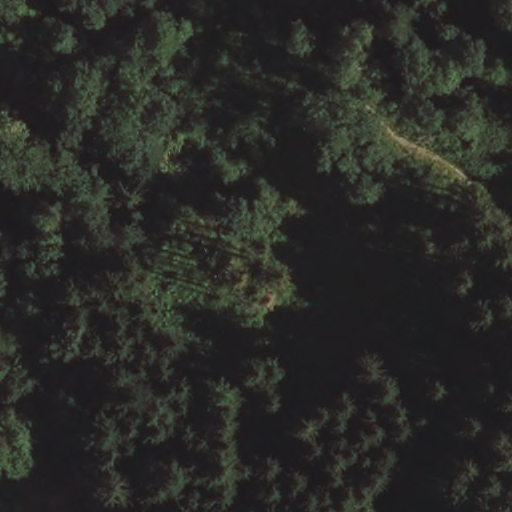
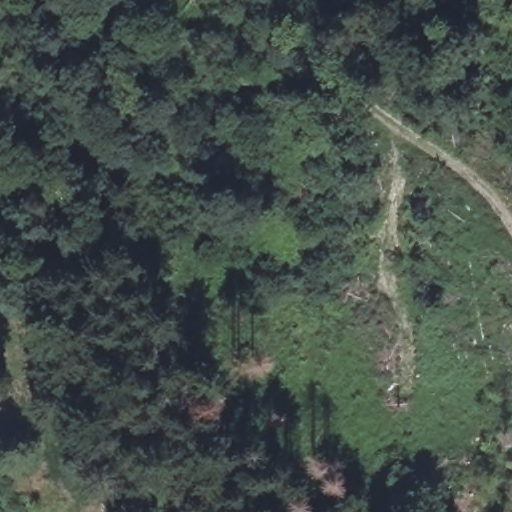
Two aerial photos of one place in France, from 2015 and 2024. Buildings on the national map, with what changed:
unchanged [(28,512),(0,512),(0,482),(14,475),(28,512)]

